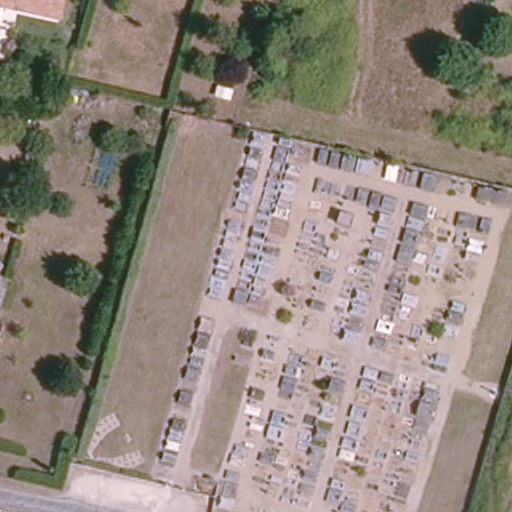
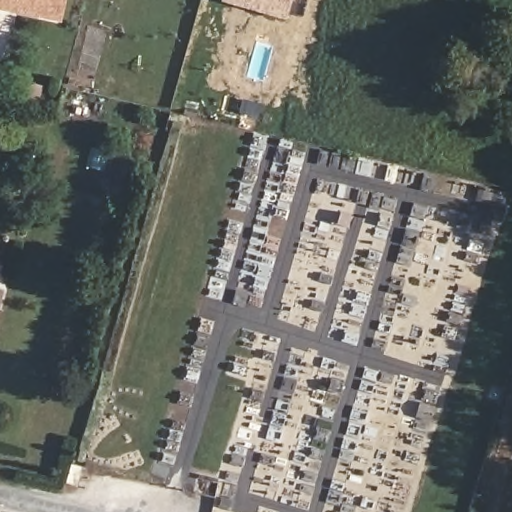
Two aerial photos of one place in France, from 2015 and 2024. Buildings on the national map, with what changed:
unchanged [(55,20),(0,7),(0,0),(60,0),(55,20)]
new [(222,0),(223,0),(291,0),(285,19),(222,0)]

